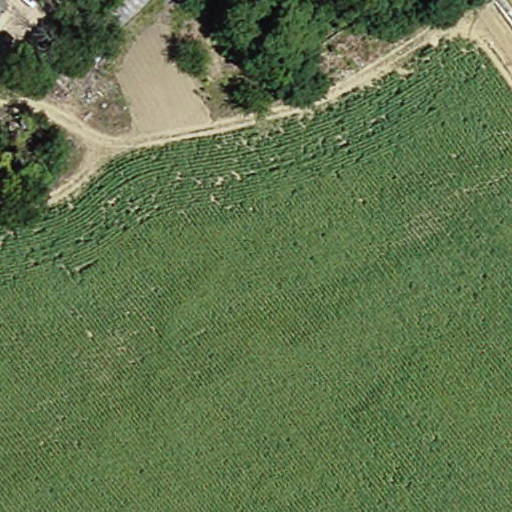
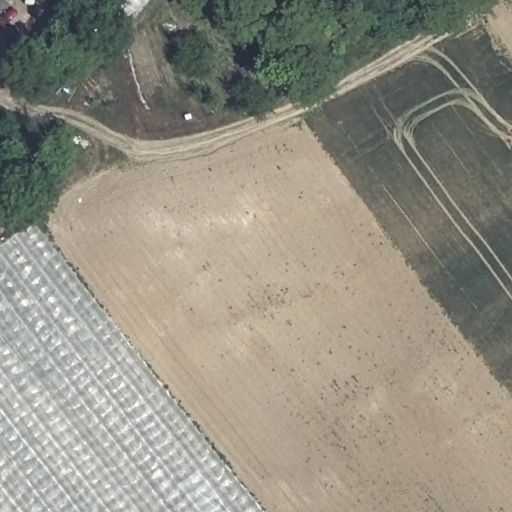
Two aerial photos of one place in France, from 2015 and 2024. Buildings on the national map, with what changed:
unchanged [(0,18),(0,0),(12,0),(15,3),(0,18)]
new [(0,512),(0,248),(33,223),(259,512),(0,512)]

